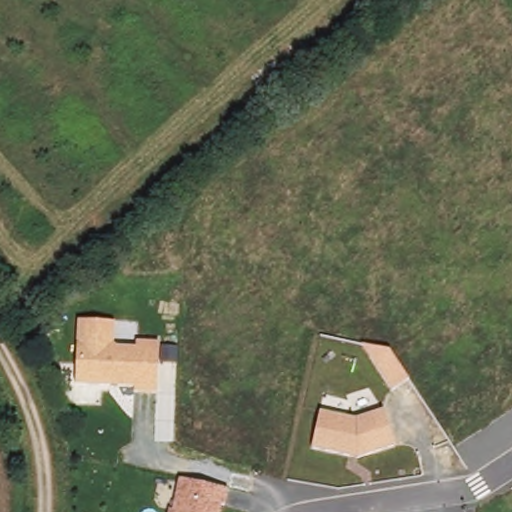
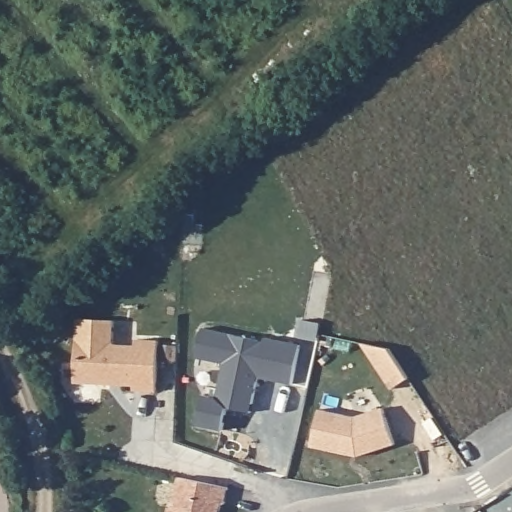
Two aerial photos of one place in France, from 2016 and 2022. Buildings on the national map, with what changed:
unchanged [(157,392),(133,392),(132,386),(71,383),(75,316),(114,316),(111,341),(133,343),(134,340),(161,342),(157,392)]
new [(202,340),(264,350),(265,346),(300,352),(293,392),(259,386),(253,422),(229,417),(225,440),(200,436),(206,407),(219,408),(225,373),(197,368),(202,340)]
unchanged [(392,390),(362,343),(390,348),(411,382),(392,390)]
unchanged [(356,456),(308,447),(318,410),(358,416),(383,407),(395,444),(356,456)]
unchanged [(220,503),(218,512),(166,512),(166,511),(170,511),(177,477),(230,487),(226,504),(220,503)]

